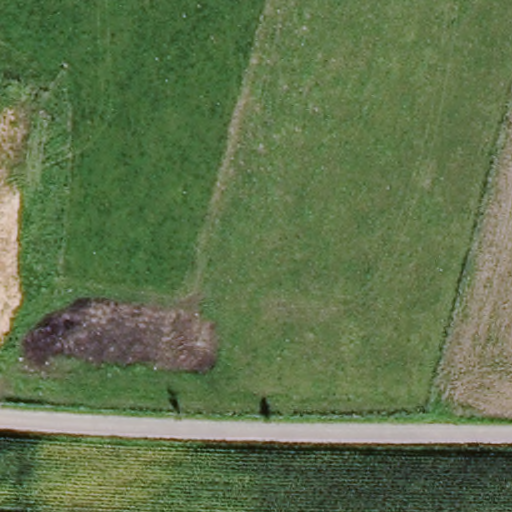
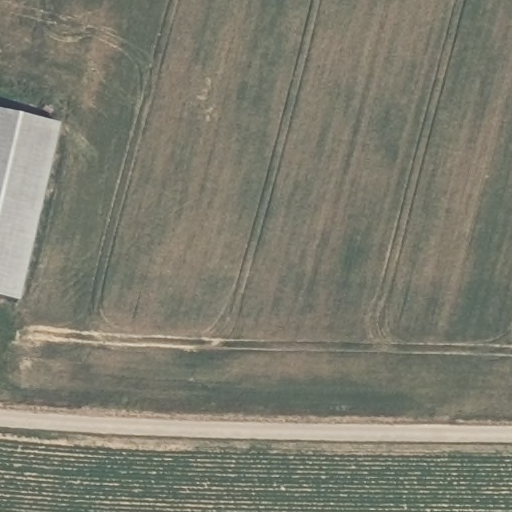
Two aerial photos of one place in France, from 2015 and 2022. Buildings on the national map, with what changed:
new [(60,125),(20,305),(0,300),(0,112),(60,125)]

